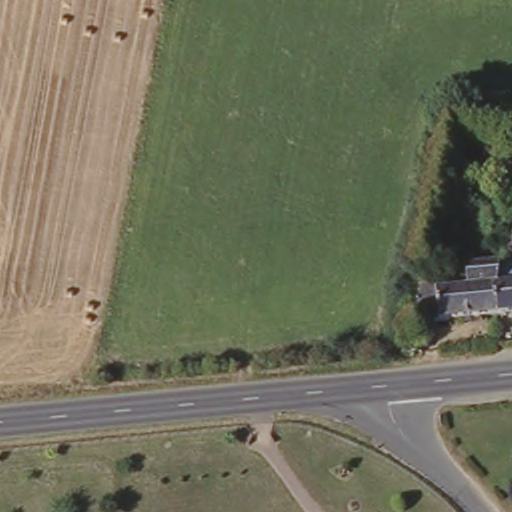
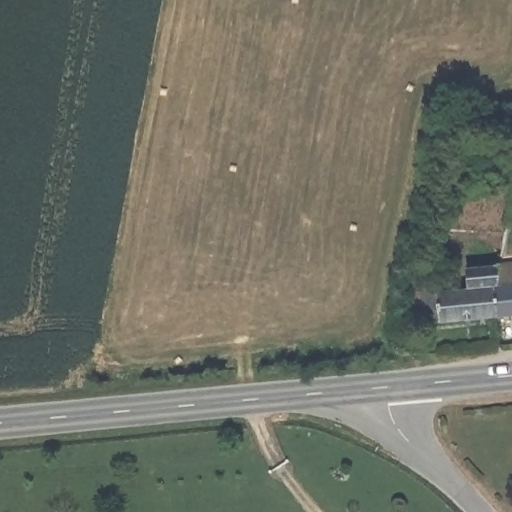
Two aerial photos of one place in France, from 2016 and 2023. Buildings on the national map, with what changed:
unchanged [(421,321),(417,300),(441,297),(440,289),(473,286),(472,263),(504,260),(497,283),(501,313),(421,321)]
unchanged [(512,282),(512,312),(501,313),(497,283),(512,282)]

